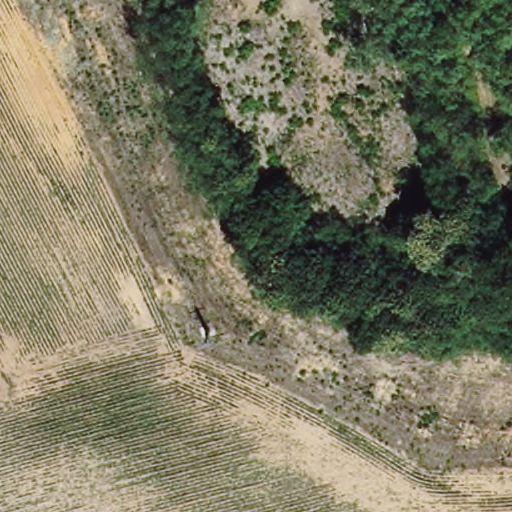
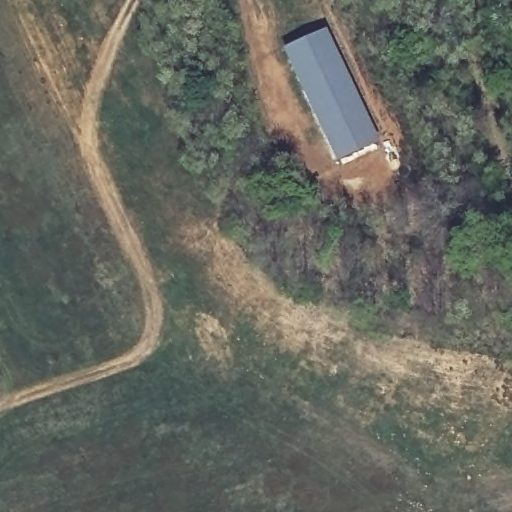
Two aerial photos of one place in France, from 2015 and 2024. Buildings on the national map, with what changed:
new [(325,33),(377,142),(337,161),(285,53),(325,33)]

